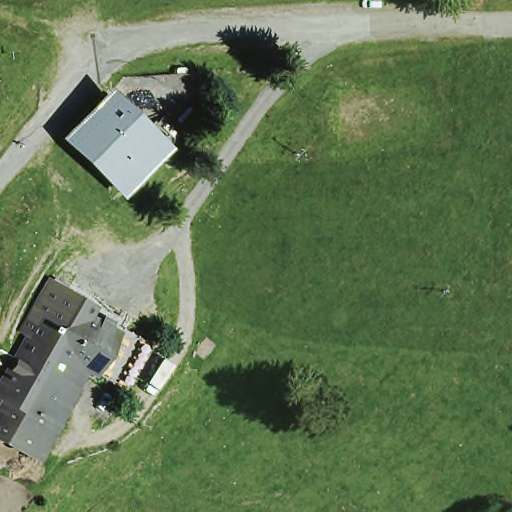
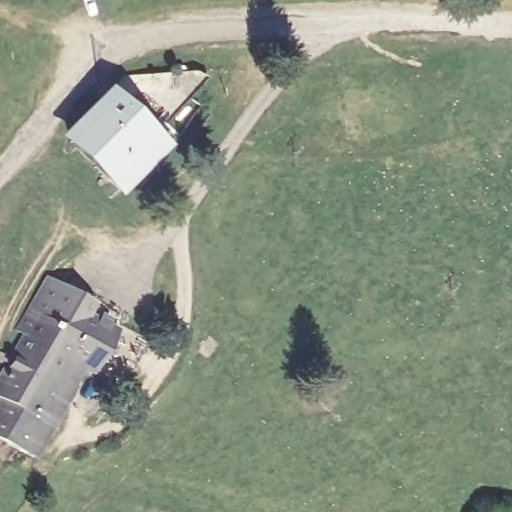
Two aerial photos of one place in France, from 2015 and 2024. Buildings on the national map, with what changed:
unchanged [(69,139),(110,99),(122,110),(142,129),(100,171),(69,139)]
unchanged [(118,189),(100,171),(142,129),(162,149),(118,189)]
unchanged [(0,438),(0,362),(10,346),(7,344),(19,325),(12,322),(24,303),(39,313),(59,280),(90,297),(83,307),(95,314),(99,307),(110,313),(106,320),(113,324),(89,364),(35,459),(0,438)]

